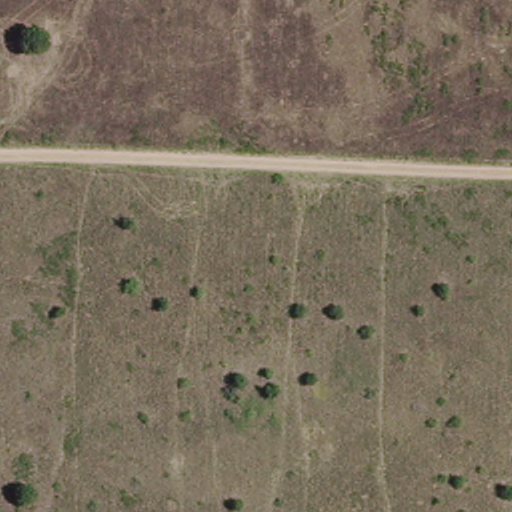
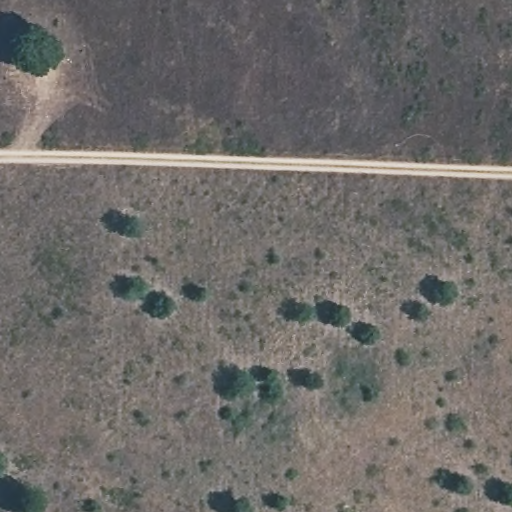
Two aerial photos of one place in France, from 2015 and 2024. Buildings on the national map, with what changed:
[]

